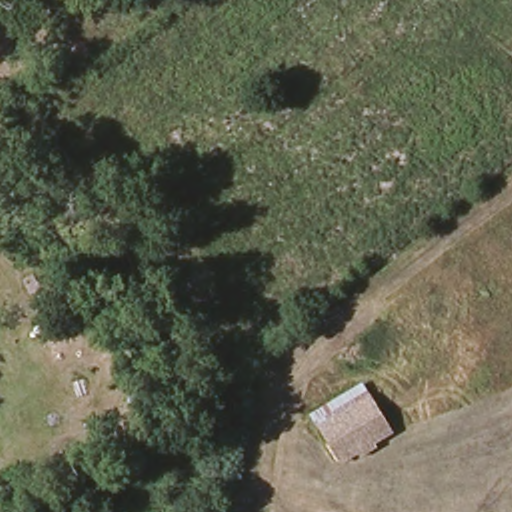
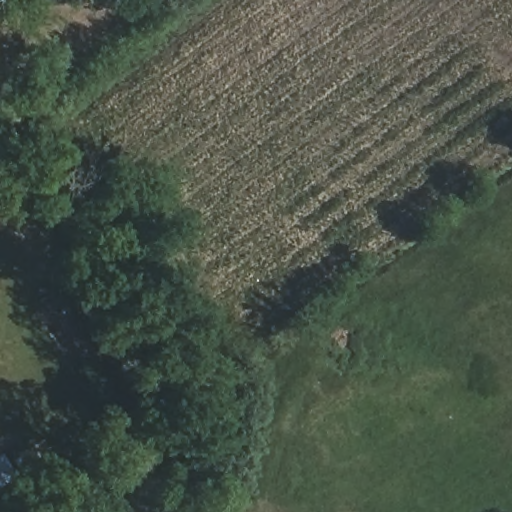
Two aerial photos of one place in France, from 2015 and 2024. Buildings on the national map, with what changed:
demolished [(390,435),(340,467),(310,415),(359,386),(390,435)]
unchanged [(221,508),(225,512),(216,512),(221,508)]

